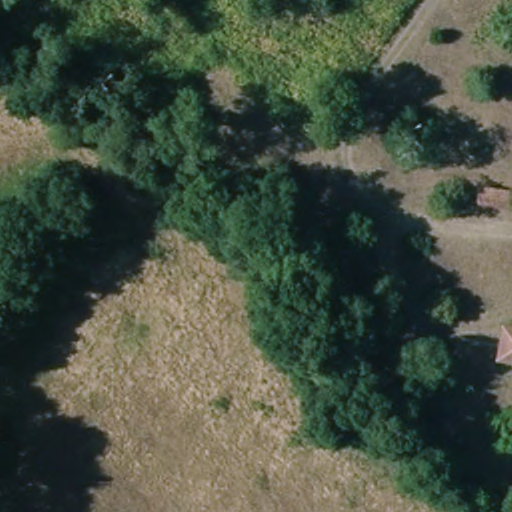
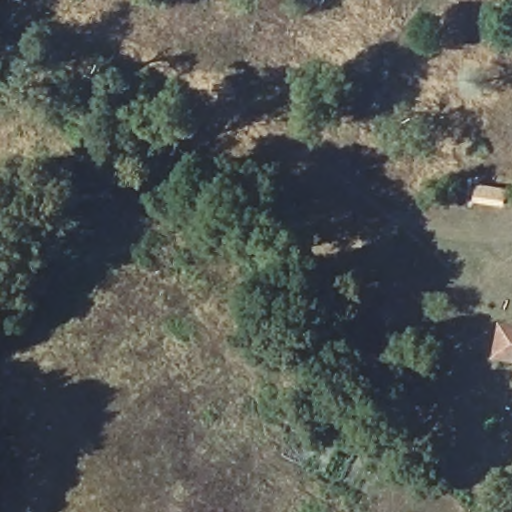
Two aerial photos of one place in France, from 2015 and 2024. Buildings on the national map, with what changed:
unchanged [(507,306),(512,307),(512,359),(496,356),(501,332),(507,306)]

